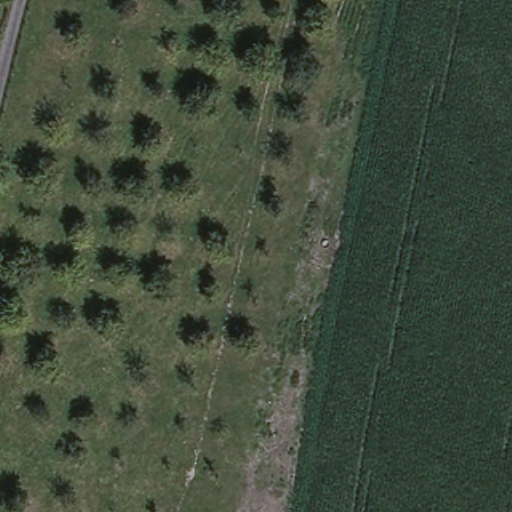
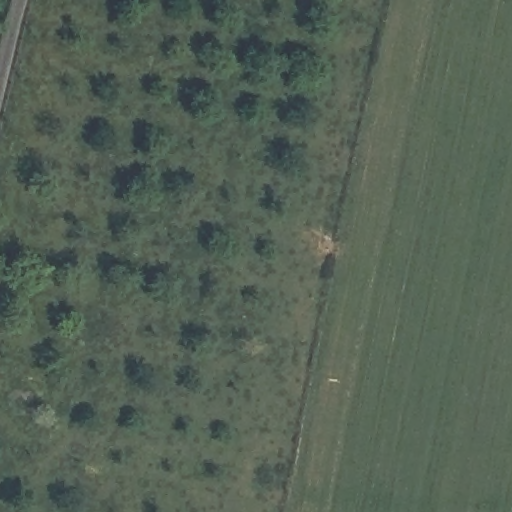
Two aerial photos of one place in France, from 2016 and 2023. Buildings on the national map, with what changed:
[]

